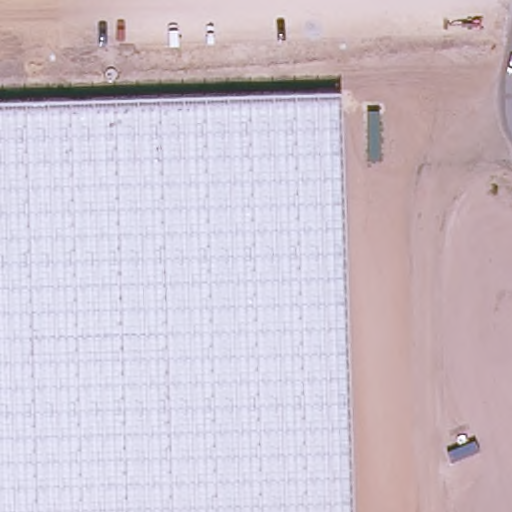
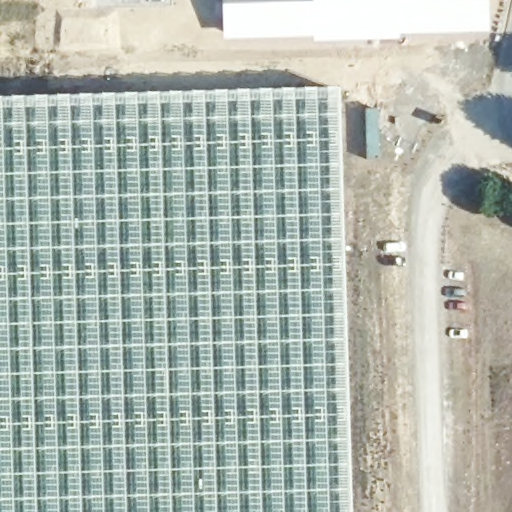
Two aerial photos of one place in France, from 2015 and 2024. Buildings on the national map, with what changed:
new [(491,30),(400,34),(400,37),(313,41),(312,36),(222,38),(221,0),(489,0),(491,30)]
unchanged [(0,512),(0,104),(339,94),(352,512),(0,512)]
new [(378,109),(379,158),(366,158),(364,109),(378,109)]

